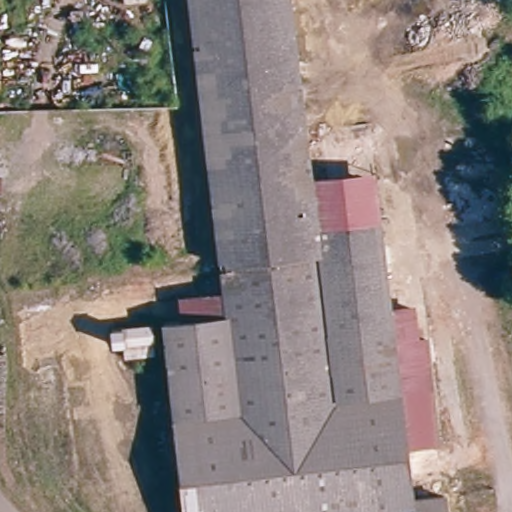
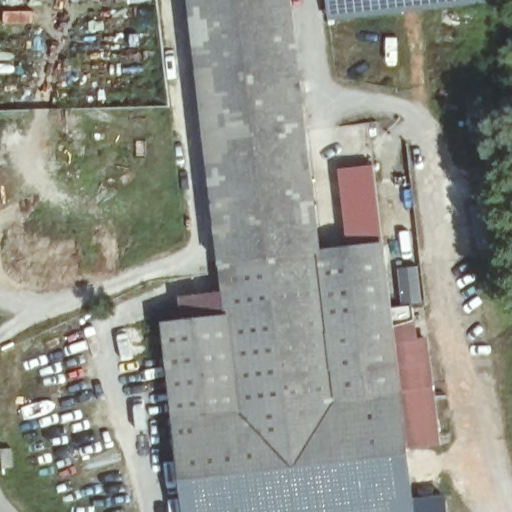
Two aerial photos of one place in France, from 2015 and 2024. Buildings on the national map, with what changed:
unchanged [(286,0),(311,183),(376,174),(387,252),(220,274),(185,0),(286,0)]
new [(328,0),(509,0),(330,19),(328,0)]
unchanged [(171,431),(181,429),(168,334),(227,325),(220,274),(387,252),(395,311),(424,308),(443,446),(414,451),(421,500),(448,499),(450,512),(191,512),(186,467),(174,467),(171,431)]
unchanged [(140,331),(145,361),(114,364),(112,352),(102,353),(101,337),(140,331)]

